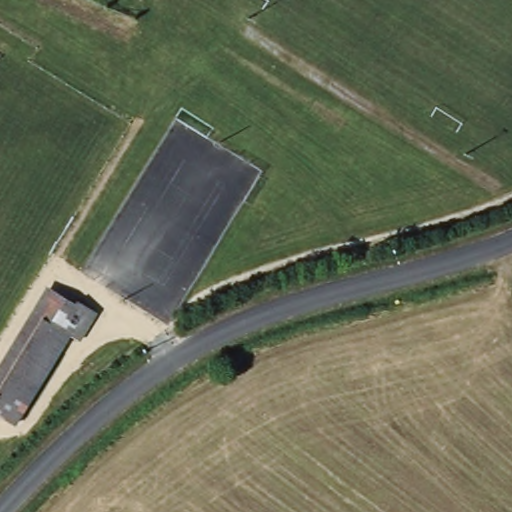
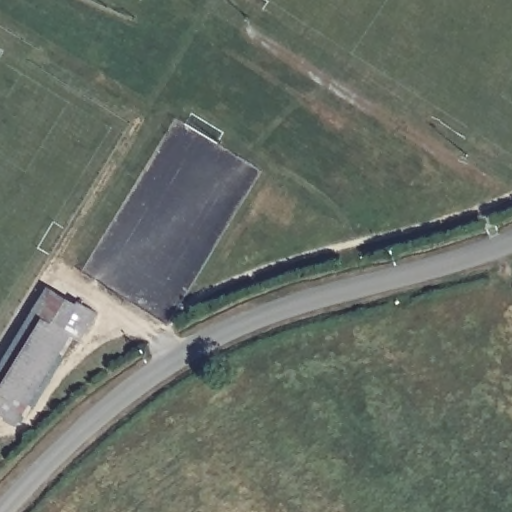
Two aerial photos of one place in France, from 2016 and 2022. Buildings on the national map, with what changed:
unchanged [(75,333),(66,327),(12,422),(0,415),(0,372),(34,312),(40,302),(60,313),(71,290),(93,302),(75,333)]

